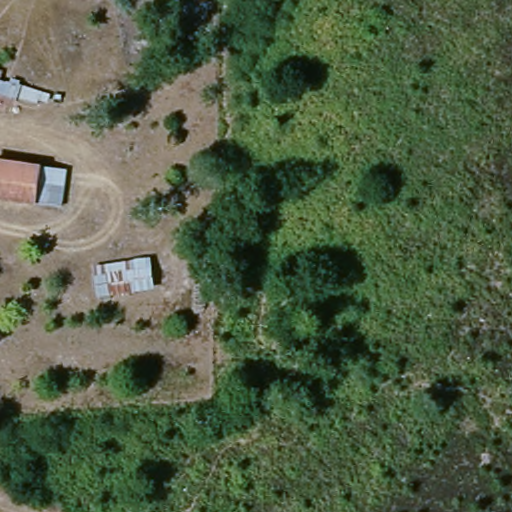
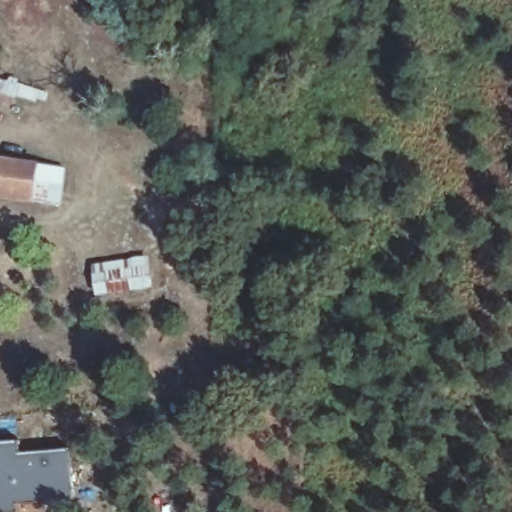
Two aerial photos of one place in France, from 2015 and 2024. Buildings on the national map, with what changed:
unchanged [(0,198),(0,172),(1,163),(54,166),(50,200),(0,198)]
unchanged [(106,295),(101,264),(150,254),(158,289),(106,295)]
new [(22,452),(71,448),(75,504),(19,507),(19,512),(0,512),(0,442),(20,440),(22,452)]

